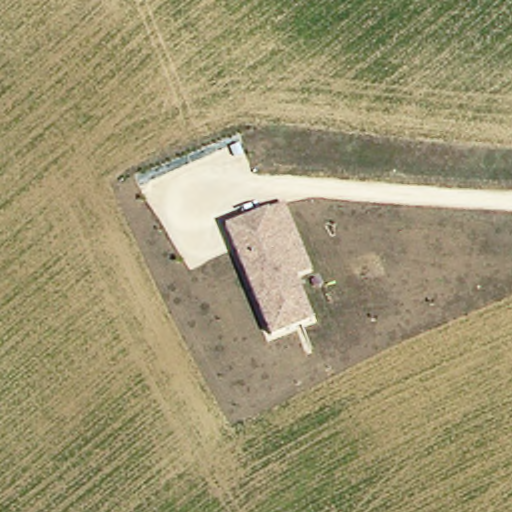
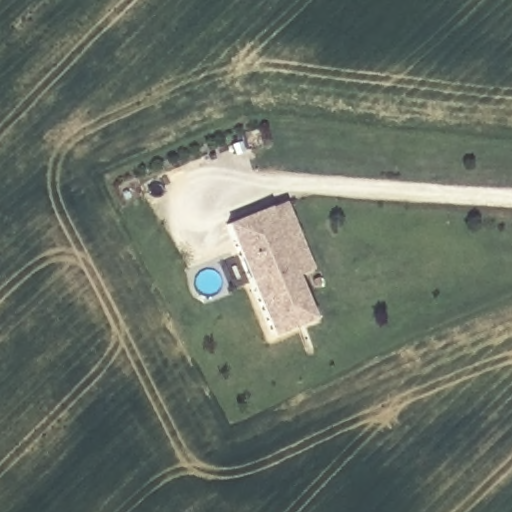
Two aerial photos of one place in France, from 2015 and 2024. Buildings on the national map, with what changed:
unchanged [(283,204),(311,267),(295,274),(268,210),(283,204)]
unchanged [(273,336),(226,225),(267,207),(268,210),(295,274),(314,318),(273,336)]

